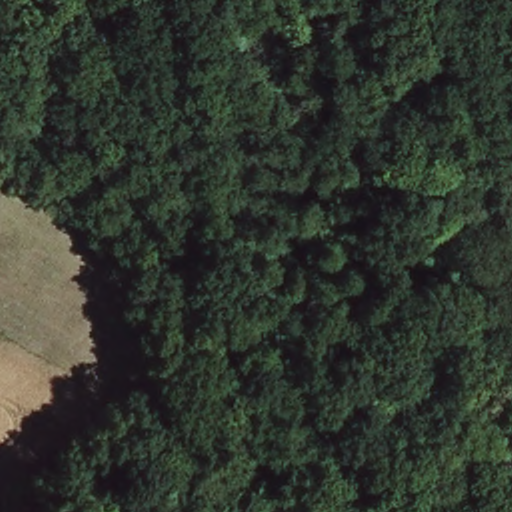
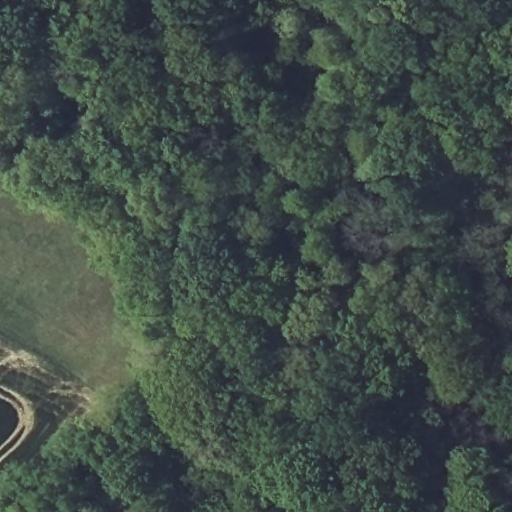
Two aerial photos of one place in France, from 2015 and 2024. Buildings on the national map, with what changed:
[]

